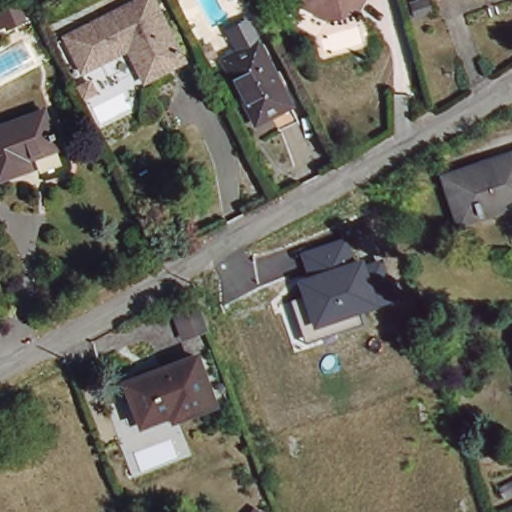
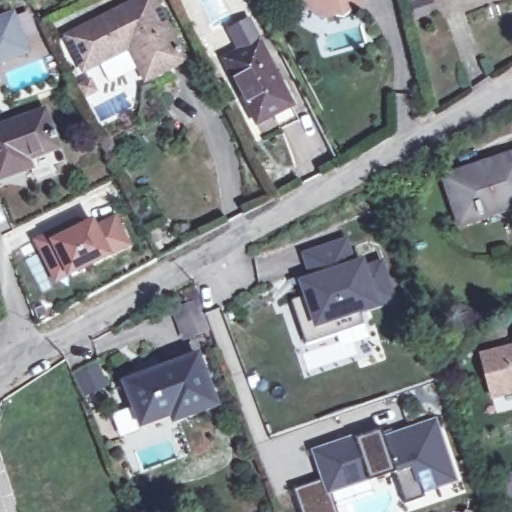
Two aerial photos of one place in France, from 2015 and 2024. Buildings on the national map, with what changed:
unchanged [(78,55),(62,22),(106,0),(156,0),(179,45),(140,65),(128,41),(112,49),(108,40),(78,55)]
unchanged [(321,12),(303,1),(303,0),(353,0),(354,2),(321,12)]
new [(353,0),(364,0),(354,2),(353,0)]
unchanged [(429,0),(434,12),(415,18),(411,4),(422,0),(429,0)]
new [(0,63),(0,19),(16,12),(30,52),(0,63)]
unchanged [(261,32),(263,32),(296,95),(261,112),(228,50),(246,41),(235,21),(251,12),(261,32)]
unchanged [(63,148),(33,159),(36,167),(4,180),(0,169),(0,130),(50,111),(63,148)]
unchanged [(448,177),(512,156),(512,206),(496,211),(494,206),(459,217),(448,177)]
new [(51,271),(38,245),(76,227),(81,225),(94,227),(98,232),(116,224),(128,250),(70,277),(57,284),(51,271)]
unchanged [(306,344),(292,302),(304,297),(299,279),(308,276),(301,255),(346,240),(355,262),(364,259),(366,266),(383,261),(394,303),(361,315),(363,325),(306,344)]
unchanged [(195,299),(208,332),(181,342),(168,309),(195,299)]
new [(512,343),(512,395),(493,401),(479,352),(512,343)]
unchanged [(134,406),(125,384),(196,358),(213,406),(172,421),(171,415),(148,422),(141,403),(134,406)]
new [(323,478),(314,452),(381,429),(384,438),(434,422),(454,480),(422,491),(424,497),(404,504),(393,471),(330,492),(337,512),(300,512),(292,488),(323,478)]
unchanged [(512,481),(512,495),(503,500),(498,488),(512,481)]

